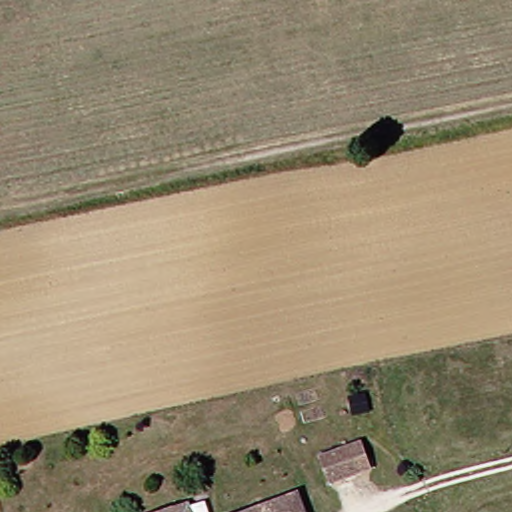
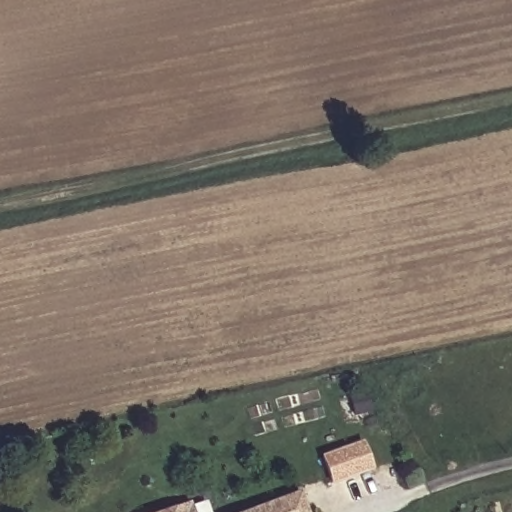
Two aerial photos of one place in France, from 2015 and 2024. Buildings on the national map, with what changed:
unchanged [(379,470),(340,484),(332,456),(370,445),(379,470)]
unchanged [(300,492),(305,512),(237,512),(300,492)]
unchanged [(195,503),(214,495),(219,512),(168,512),(195,503)]

